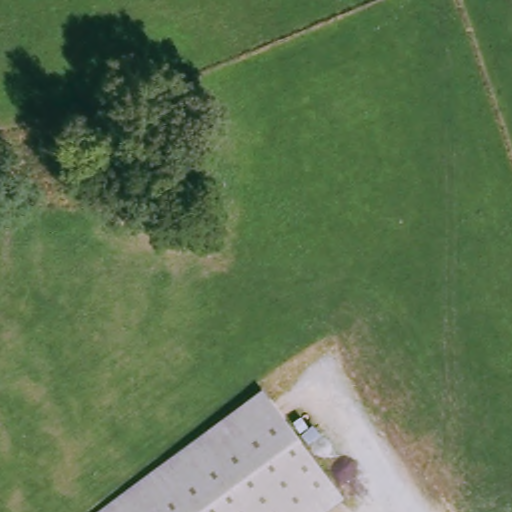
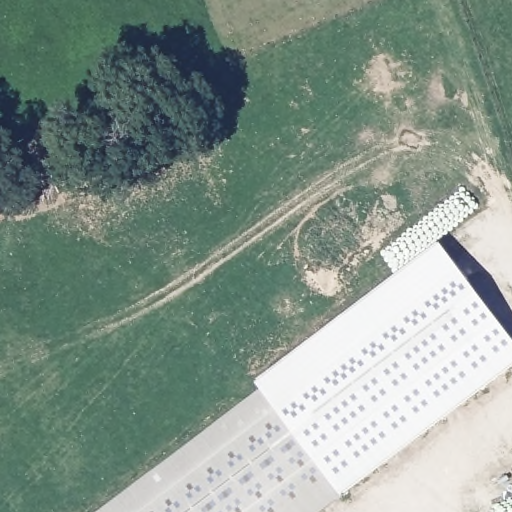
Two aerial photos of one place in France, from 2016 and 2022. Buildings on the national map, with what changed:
new [(265,385),(445,251),(512,338),(512,368),(345,492),(265,385)]
unchanged [(318,512),(93,512),(265,385),(345,492),(318,512)]

